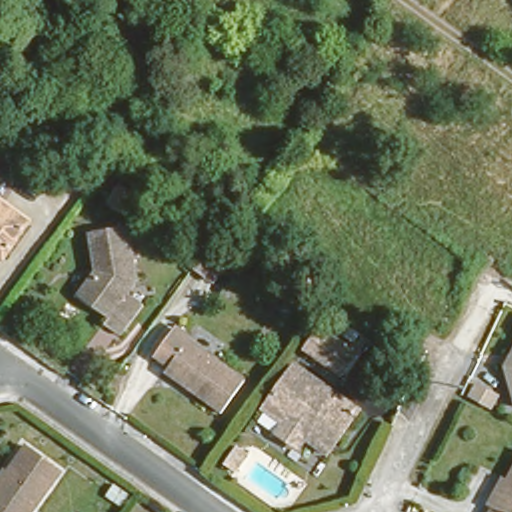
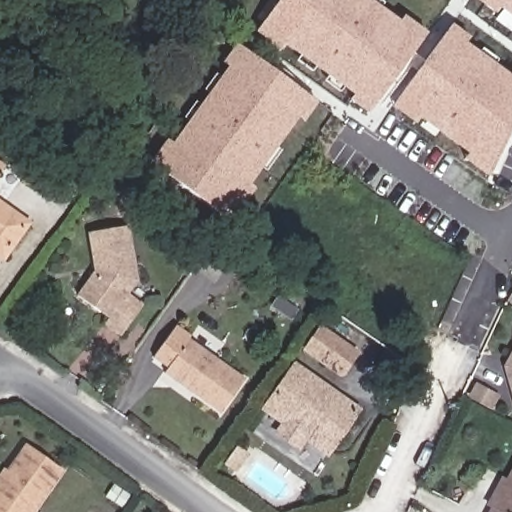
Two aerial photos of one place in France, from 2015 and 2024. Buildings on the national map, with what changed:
unchanged [(186,0),(193,0),(190,4),(186,0)]
new [(352,95),(285,47),(280,53),(255,34),(280,0),(372,0),(400,21),(405,15),(427,32),(368,114),(348,100),(352,95)]
new [(500,9),(495,15),(474,0),(512,0),(512,18),(500,9)]
new [(467,40),(466,44),(510,75),(512,72),(512,128),(488,177),(463,159),(467,154),(416,117),(412,122),(391,107),(450,27),(467,40)]
new [(165,140),(170,143),(227,65),(221,62),(235,43),(318,103),(305,123),(298,119),(250,183),(256,188),(231,223),(147,167),(165,140)]
unchanged [(24,162),(4,148),(16,129),(37,143),(24,162)]
unchanged [(1,255),(0,254),(0,198),(27,217),(1,255)]
unchanged [(147,297),(125,328),(109,317),(112,311),(84,290),(100,266),(95,230),(131,227),(138,273),(130,285),(147,297)]
unchanged [(342,377),(306,352),(321,331),(356,356),(342,377)]
unchanged [(219,406),(164,368),(184,337),(240,375),(219,406)]
unchanged [(510,362),(512,358),(512,368),(510,362)]
unchanged [(304,433),(296,444),(275,430),(281,420),(260,406),(290,363),(356,408),(335,441),(329,450),(304,433)]
unchanged [(407,377),(411,367),(425,372),(420,382),(407,377)]
unchanged [(506,370),(512,368),(512,387),(506,370)]
unchanged [(55,463),(24,512),(0,512),(0,477),(24,442),(55,463)]
unchanged [(491,502),(485,500),(498,473),(503,476),(512,456),(512,512),(487,512),(491,502)]

